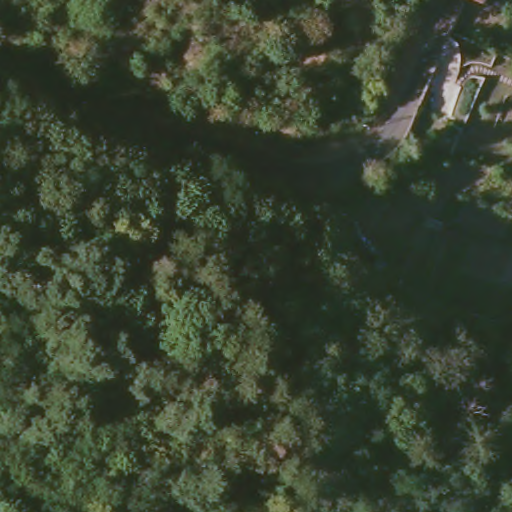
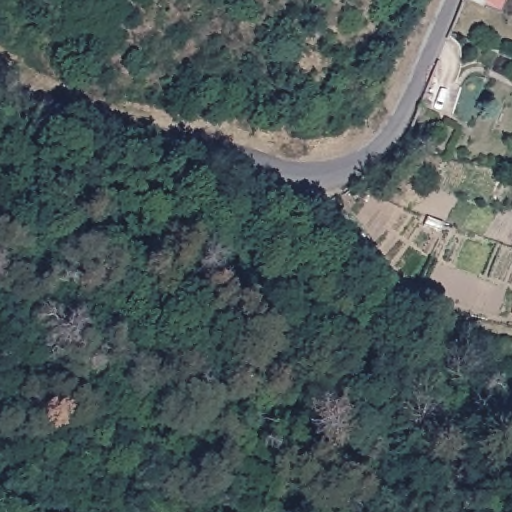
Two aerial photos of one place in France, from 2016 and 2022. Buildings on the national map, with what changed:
unchanged [(478,0),(491,0),(489,5),(478,0)]

